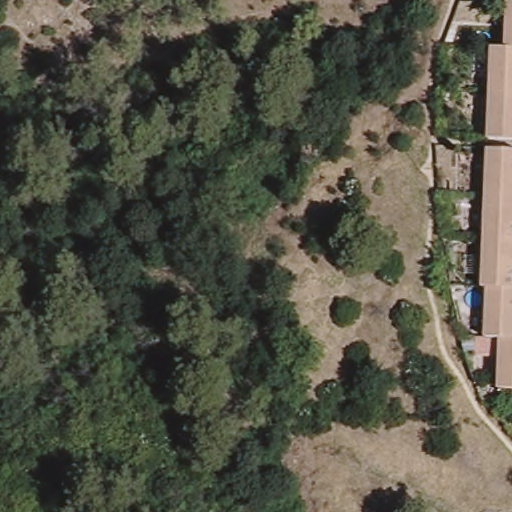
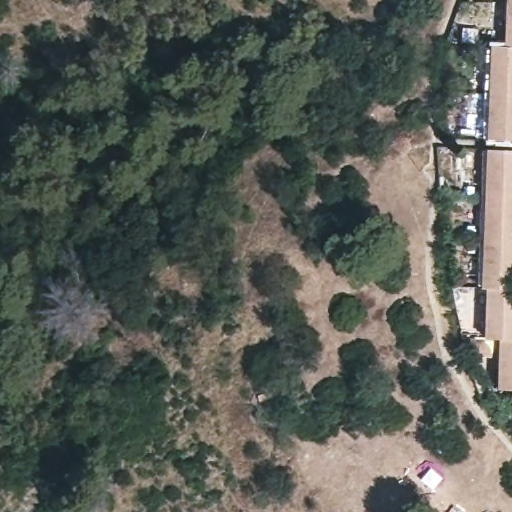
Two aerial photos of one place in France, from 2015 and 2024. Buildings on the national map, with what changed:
unchanged [(489,139),(491,46),(506,47),(507,0),(512,0),(512,139),(489,139)]
unchanged [(498,393),(500,342),(486,342),(488,291),(483,291),(487,154),(512,156),(512,393),(498,393)]

